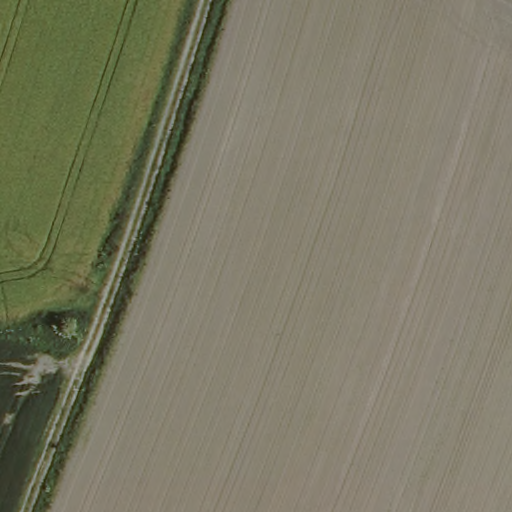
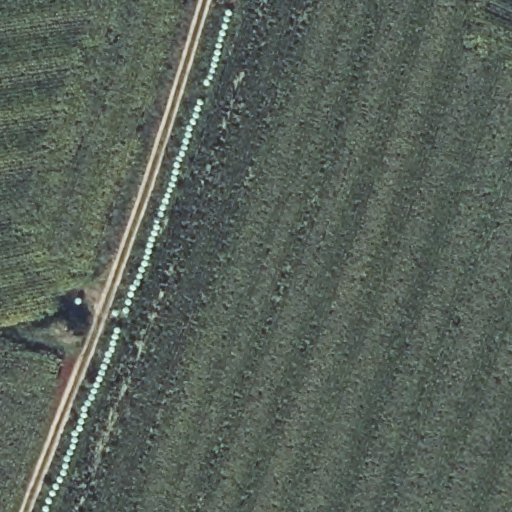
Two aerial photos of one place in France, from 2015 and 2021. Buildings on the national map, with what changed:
[]

